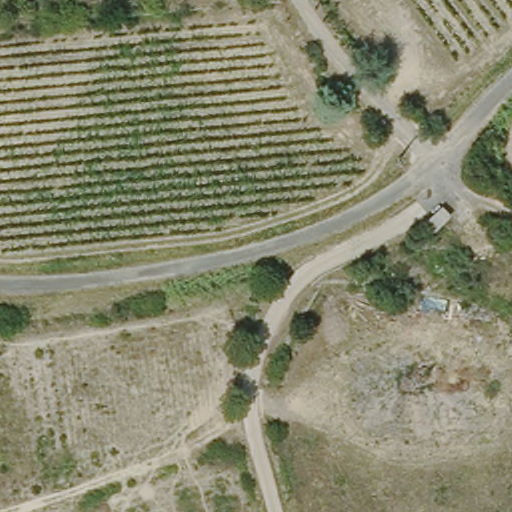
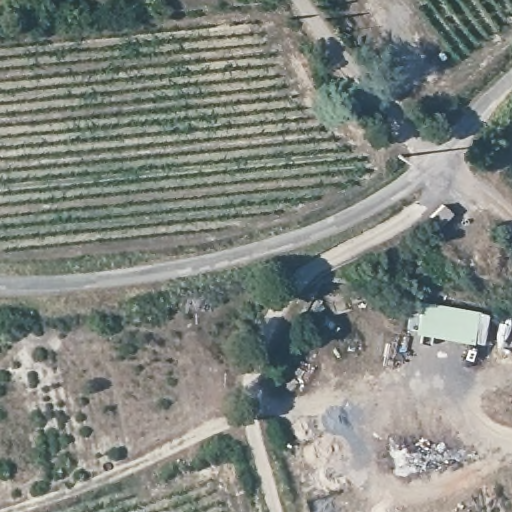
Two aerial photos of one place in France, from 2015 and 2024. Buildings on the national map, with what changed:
new [(472,342),(472,345),(416,333),(417,328),(407,327),(412,302),(421,302),(480,312),(486,315),(481,345),(472,342)]

